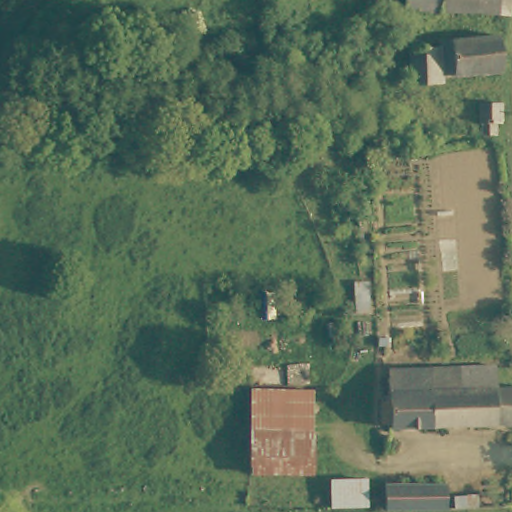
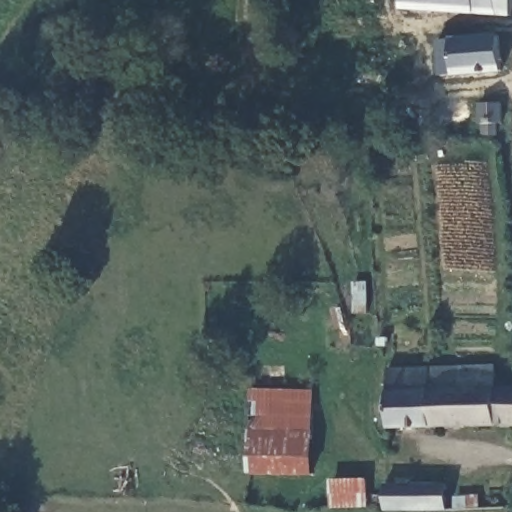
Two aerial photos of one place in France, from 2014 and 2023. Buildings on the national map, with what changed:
unchanged [(439,9),(373,6),(373,0),(439,0),(439,9)]
unchanged [(507,11),(439,9),(439,0),(511,0),(507,11)]
unchanged [(439,37),(457,36),(501,32),(507,68),(444,75),(441,46),(439,37)]
unchanged [(389,46),(389,57),(379,57),(379,64),(367,65),(362,55),(363,35),(386,34),(386,40),(389,41),(389,46)]
unchanged [(444,75),(446,85),(416,88),(412,49),(441,46),(444,75)]
unchanged [(506,126),(500,126),(501,137),(484,138),(482,106),(506,104),(506,126)]
unchanged [(512,389),(512,427),(392,428),(391,369),(405,369),(500,367),(499,389),(512,389)]
unchanged [(249,388),(313,389),(315,440),(250,440),(249,388)]
unchanged [(317,471),(252,474),(250,440),(315,440),(317,471)]
unchanged [(365,500),(326,501),(325,479),(366,479),(365,500)]
unchanged [(389,507),(389,484),(449,485),(450,498),(483,494),(483,507),(451,509),(451,507),(389,507)]

